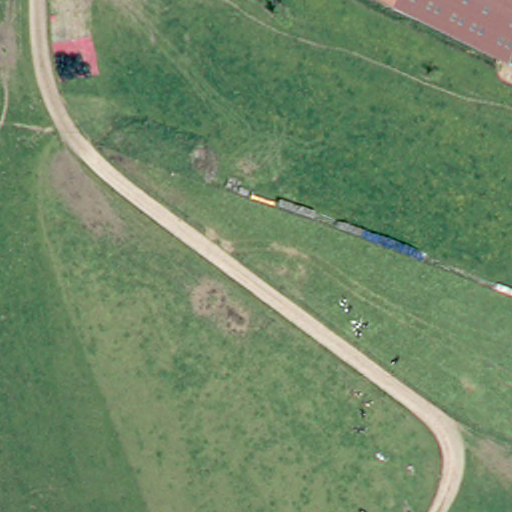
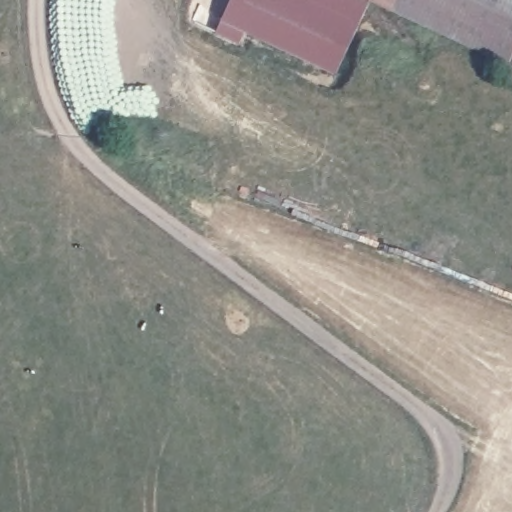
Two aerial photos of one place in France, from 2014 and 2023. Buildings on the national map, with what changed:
new [(336,74),(221,21),(231,0),(361,0),(368,3),(336,74)]
unchanged [(393,15),(361,0),(400,0),(393,15)]
unchanged [(508,65),(393,15),(400,0),(512,0),(512,55),(508,65)]

